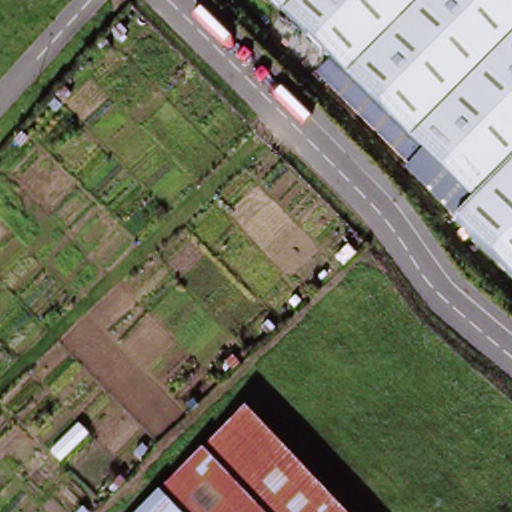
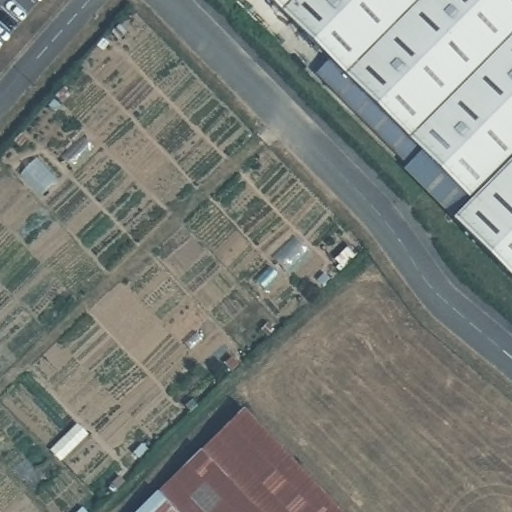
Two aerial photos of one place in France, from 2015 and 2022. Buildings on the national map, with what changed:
unchanged [(262,0),(512,0),(512,113),(444,178),(262,0)]
unchanged [(480,215),(444,178),(512,113),(512,282),(463,231),(480,215)]
unchanged [(330,512),(138,512),(240,416),(330,512)]

